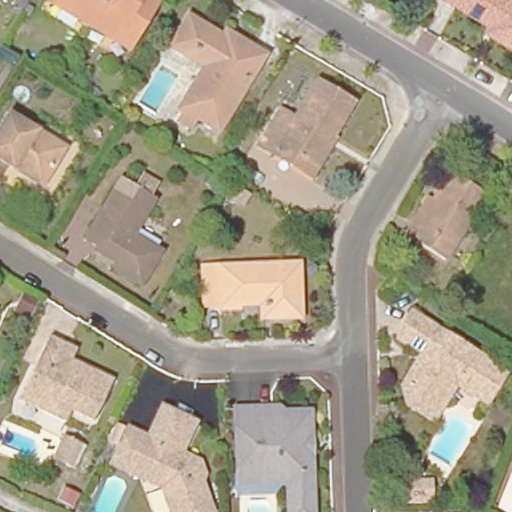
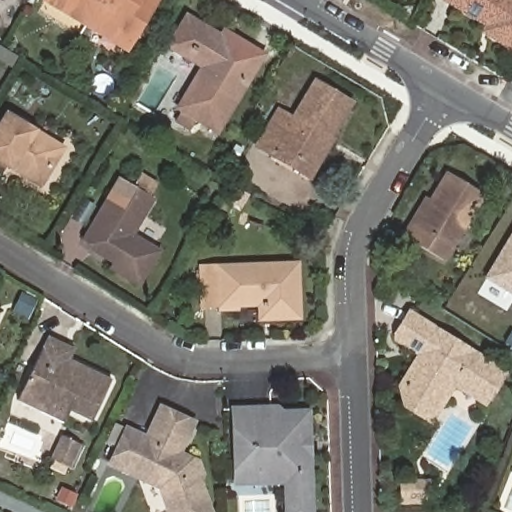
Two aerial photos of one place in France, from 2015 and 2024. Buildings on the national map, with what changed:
unchanged [(124,47),(46,0),(151,0),(124,47)]
unchanged [(482,24),(443,0),(512,0),(512,47),(511,50),(484,34),(478,30),(482,24)]
unchanged [(183,19),(217,40),(220,33),(241,46),(258,56),(214,132),(174,107),(193,76),(200,63),(189,55),(169,41),(183,19)]
unchanged [(309,182),(270,159),(254,149),(274,113),(289,120),(311,83),(347,103),(327,139),(332,143),(309,182)]
unchanged [(59,152),(38,189),(0,166),(0,126),(4,118),(59,152)]
unchanged [(480,196),(440,260),(403,236),(411,223),(426,199),(430,202),(446,175),(480,196)]
unchanged [(96,249),(85,241),(109,200),(122,179),(134,186),(144,192),(151,181),(161,186),(154,199),(133,235),(158,251),(137,285),(111,269),(114,263),(95,251),(96,249)]
unchanged [(244,197),(238,208),(225,200),(232,189),(244,197)]
new [(489,277),(512,239),(512,292),(489,277)]
unchanged [(257,304),(199,306),(198,267),(293,264),(295,317),(269,318),(257,319),(257,304)]
unchanged [(383,277),(395,284),(385,298),(374,291),(383,277)]
unchanged [(410,399),(403,377),(413,359),(422,345),(418,343),(401,332),(399,323),(411,304),(434,318),(507,362),(487,394),(457,376),(449,389),(434,413),(419,405),(410,399)]
unchanged [(44,404),(19,393),(50,329),(66,337),(76,342),(71,353),(112,373),(94,412),(71,402),(65,415),(44,404)]
unchanged [(161,482),(111,458),(128,422),(149,432),(163,402),(193,417),(178,447),(189,453),(197,456),(203,471),(198,482),(209,512),(172,512),(172,511),(161,482)]
unchanged [(279,416),(305,415),(311,512),(287,512),(285,485),(235,488),(231,414),(274,411),(279,416)]
unchanged [(79,441),(68,463),(50,455),(60,432),(79,441)]
unchanged [(76,478),(69,492),(58,486),(64,472),(76,478)]
unchanged [(433,486),(437,503),(409,510),(406,493),(433,486)]

